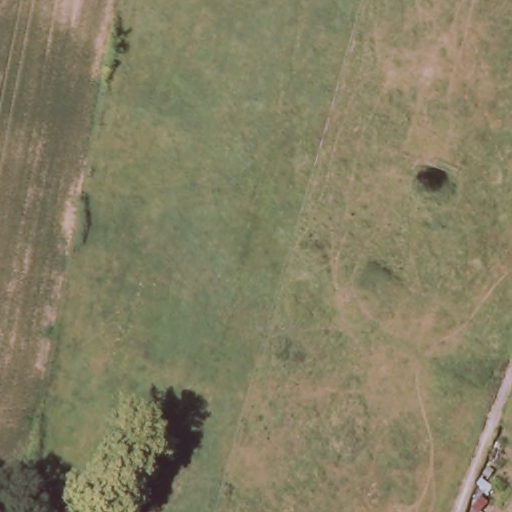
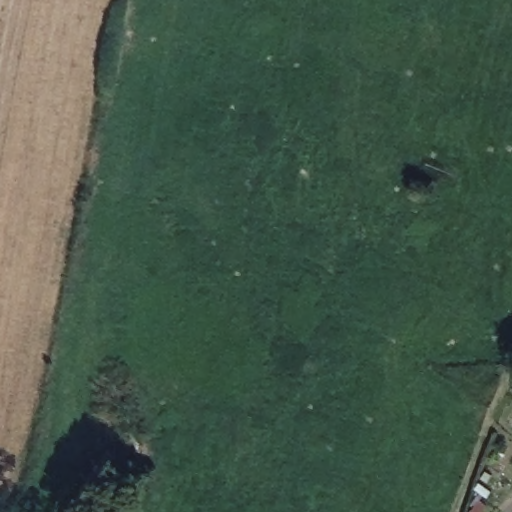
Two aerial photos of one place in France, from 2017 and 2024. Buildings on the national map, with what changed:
unchanged [(475,487),(480,480),(491,489),(486,496),(475,487)]

